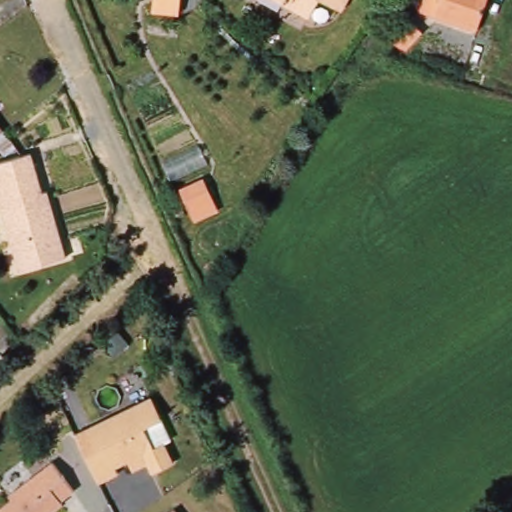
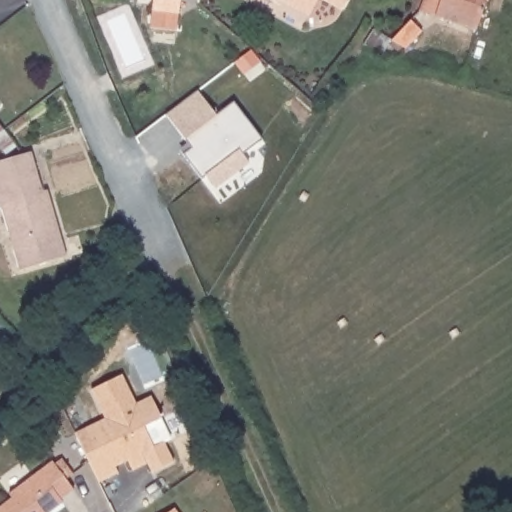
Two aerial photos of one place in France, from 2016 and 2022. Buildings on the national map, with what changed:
unchanged [(154,0),(181,0),(179,20),(153,17),(154,0)]
unchanged [(349,0),(342,14),(319,2),(311,16),(308,22),(269,0),(349,0)]
unchanged [(488,0),(477,35),(420,17),(425,0),(488,0)]
unchanged [(411,21),(412,21),(423,32),(406,48),(392,40),(411,21)]
new [(206,175),(203,177),(185,152),(193,146),(187,138),(185,140),(166,115),(198,91),(215,115),(234,102),(262,138),(242,152),(248,163),(215,187),(206,175)]
unchanged [(0,134),(0,127),(4,132),(0,134)]
unchanged [(43,192),(47,191),(66,257),(20,271),(1,206),(0,206),(0,162),(31,153),(43,192)]
demolished [(180,185),(204,174),(213,194),(189,205),(180,185)]
unchanged [(131,467),(128,461),(116,467),(119,473),(99,482),(76,433),(148,398),(159,421),(145,427),(155,447),(165,442),(174,462),(153,472),(148,463),(133,471),(131,467)]
unchanged [(0,507),(12,498),(9,494),(53,462),(74,490),(61,500),(63,502),(50,512),(0,512),(0,507)]
unchanged [(175,508),(177,512),(170,512),(175,508)]

